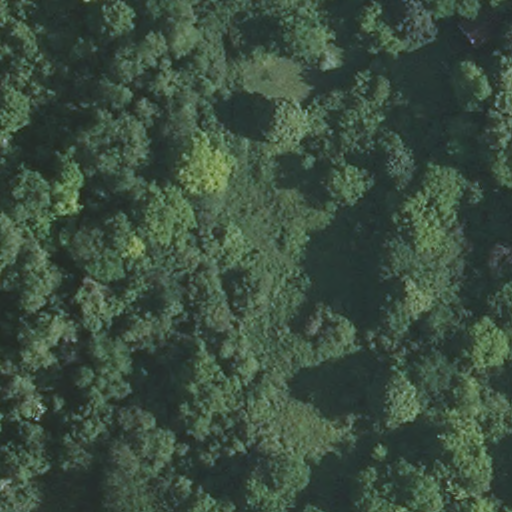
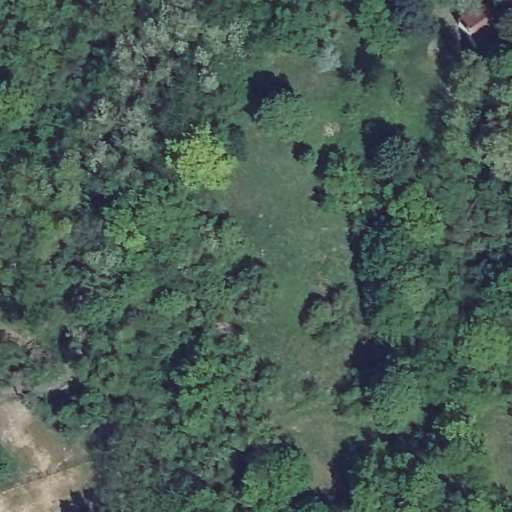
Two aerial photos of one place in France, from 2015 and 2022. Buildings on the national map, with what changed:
unchanged [(502,0),(512,13),(512,22),(475,47),(460,20),(489,0),(502,0)]

